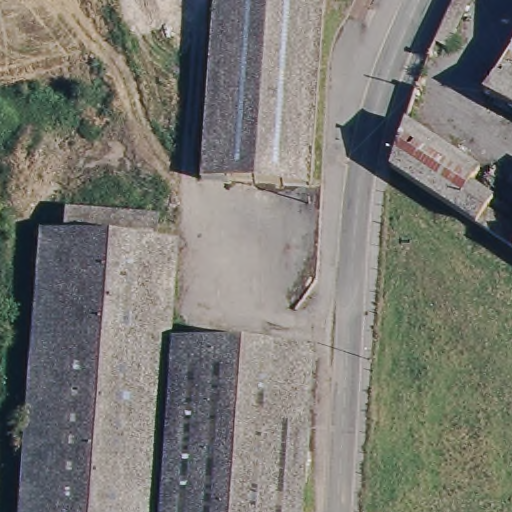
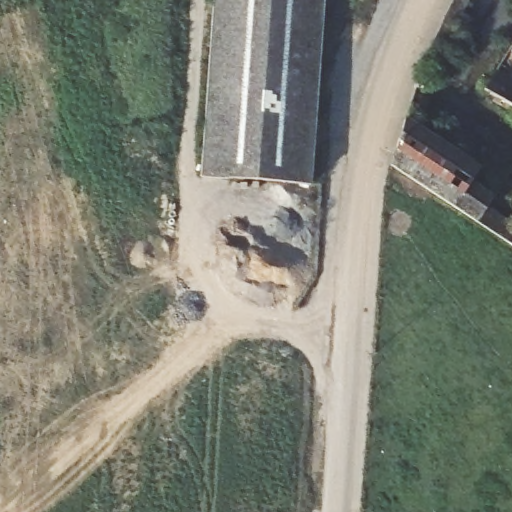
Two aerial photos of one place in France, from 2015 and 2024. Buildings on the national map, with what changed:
unchanged [(324,0),(312,180),(203,172),(214,0),(324,0)]
unchanged [(512,44),(512,107),(484,91),(512,44)]
unchanged [(394,145),(403,120),(478,168),(474,180),(493,194),(488,204),(499,212),(492,230),(409,177),(390,165),(394,145)]
unchanged [(512,231),(512,243),(503,237),(509,230),(512,231)]
demolished [(38,231),(158,241),(149,342),(173,343),(161,512),(15,512),(38,231)]
demolished [(173,343),(288,351),(286,423),(311,425),(304,512),(161,512),(173,343)]

